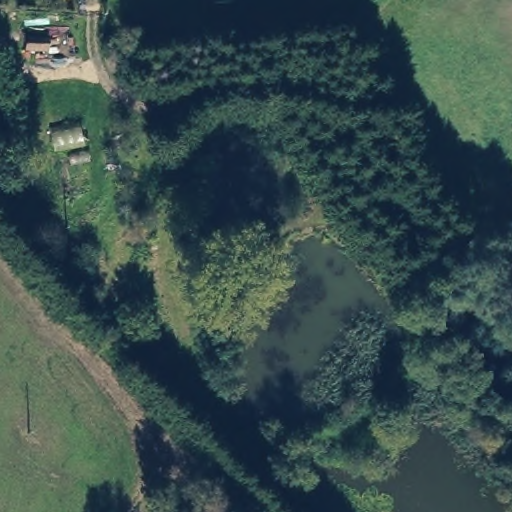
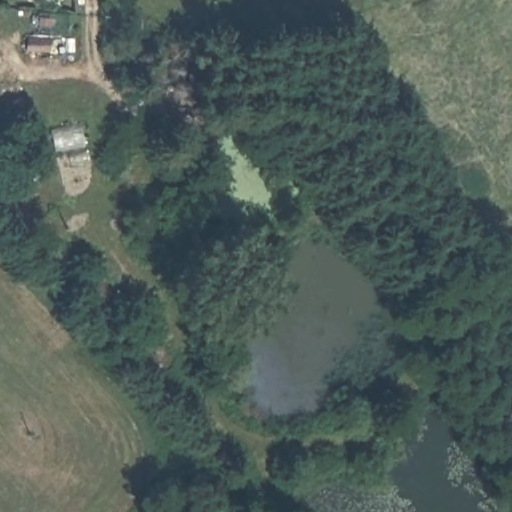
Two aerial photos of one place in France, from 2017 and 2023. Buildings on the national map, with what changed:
unchanged [(278,224),(264,204),(299,178),(313,197),(278,224)]

